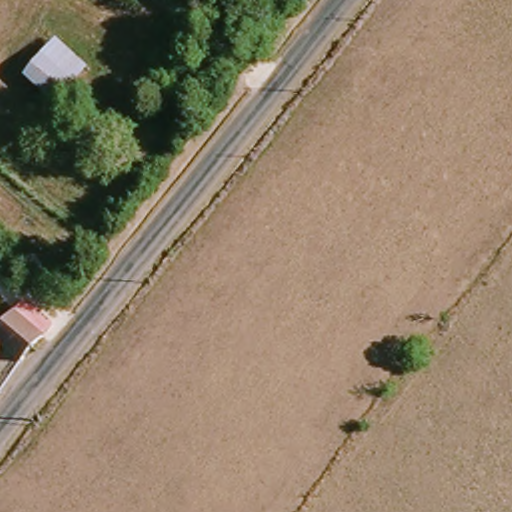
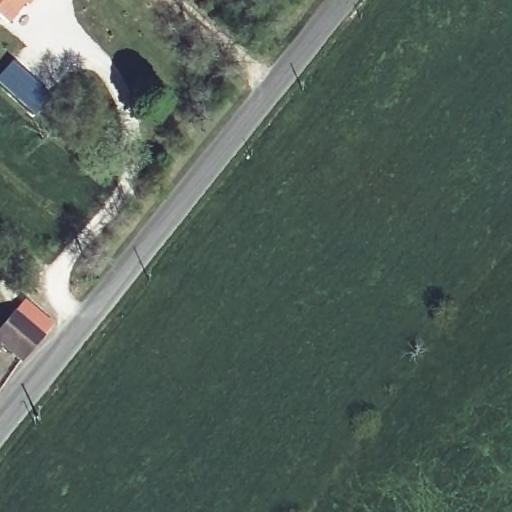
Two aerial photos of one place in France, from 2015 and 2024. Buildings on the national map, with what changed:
new [(0,16),(0,0),(26,0),(8,23),(0,16)]
unchanged [(17,74),(52,36),(85,65),(50,101),(17,74)]
unchanged [(0,314),(6,307),(35,330),(17,354),(0,341),(0,314)]

